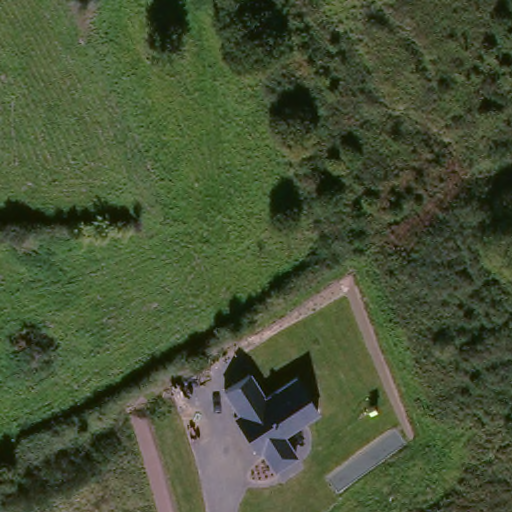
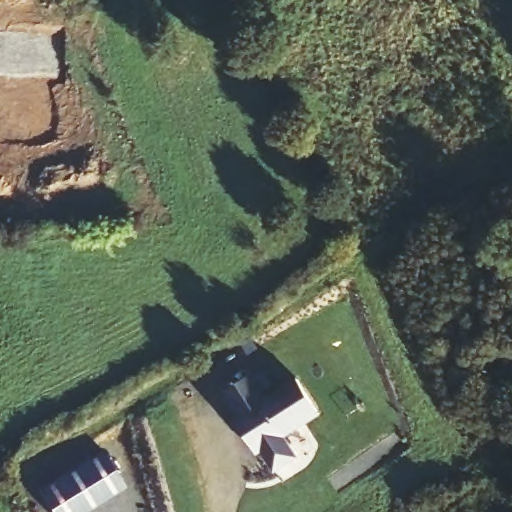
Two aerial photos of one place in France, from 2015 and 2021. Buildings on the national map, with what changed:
unchanged [(262,453),(257,457),(233,418),(239,414),(224,393),(250,375),(264,397),(296,379),(319,416),(284,437),(298,458),(273,472),(262,453)]

